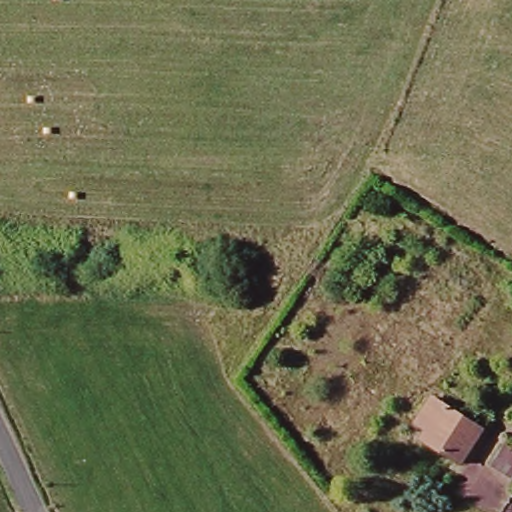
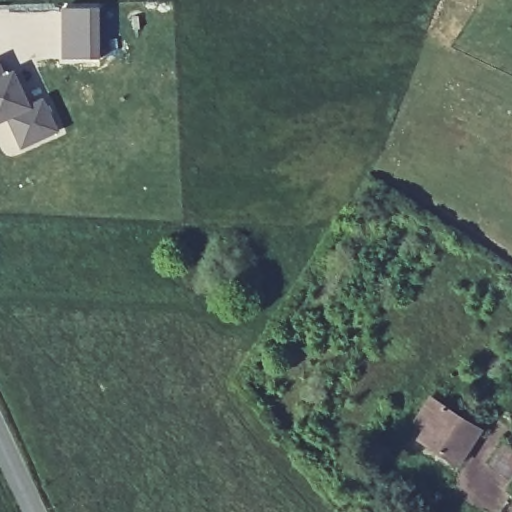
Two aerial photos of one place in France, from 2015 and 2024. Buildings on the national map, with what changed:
new [(60,9),(95,9),(96,60),(60,59),(60,9)]
new [(10,74),(26,109),(40,102),(54,133),(19,149),(5,119),(0,122),(0,76),(1,78),(10,74)]
unchanged [(457,458),(425,437),(432,426),(423,419),(438,397),(482,426),(489,431),(466,464),(460,461),(457,458)]
unchanged [(512,442),(512,474),(494,463),(508,440),(512,442)]

